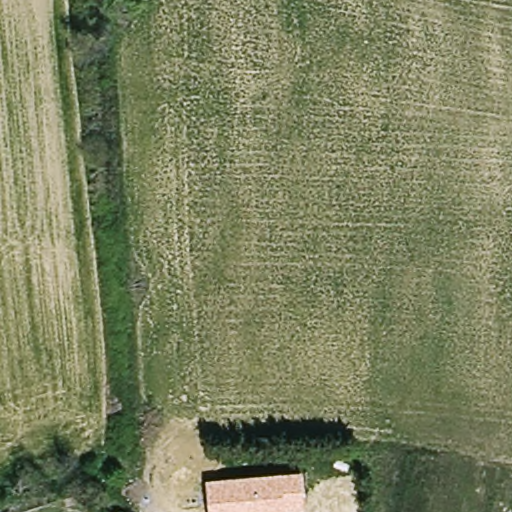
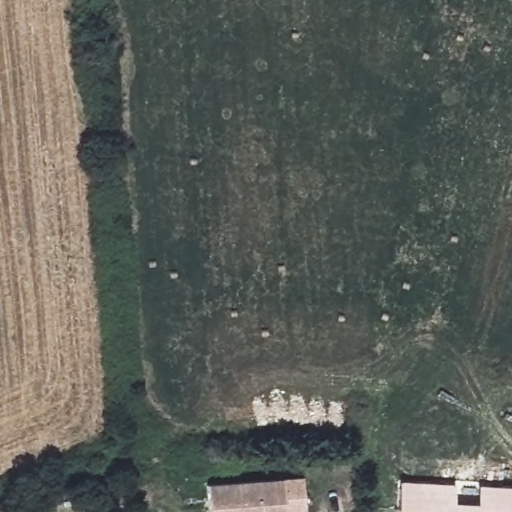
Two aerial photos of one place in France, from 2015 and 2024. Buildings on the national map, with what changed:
unchanged [(283,478),(301,476),(304,512),(208,512),(206,484),(283,478)]
new [(453,502),(475,502),(476,483),(512,485),(512,508),(505,507),(504,512),(421,512),(421,510),(396,508),(398,480),(453,483),(453,502)]

